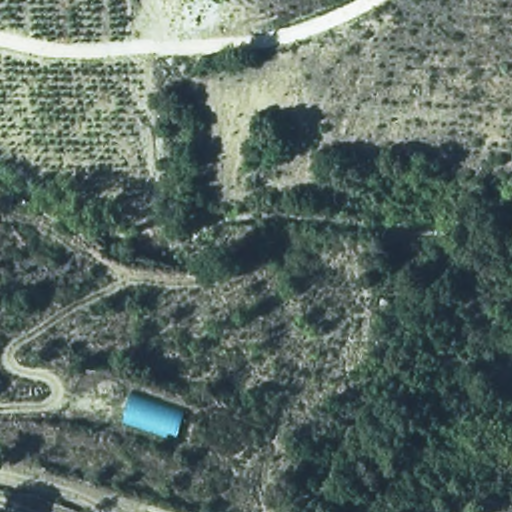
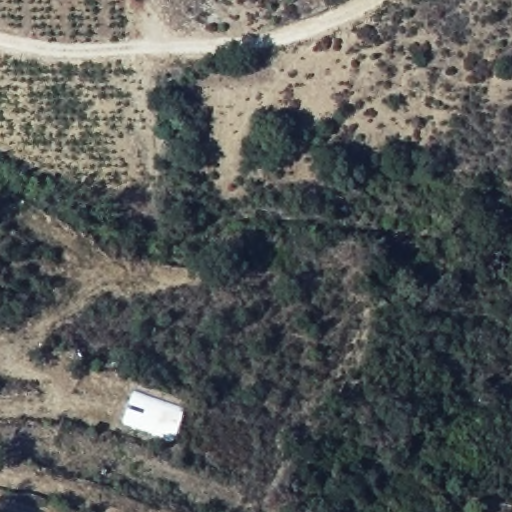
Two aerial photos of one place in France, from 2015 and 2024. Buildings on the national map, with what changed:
unchanged [(176,442),(124,425),(133,394),(186,411),(176,442)]

